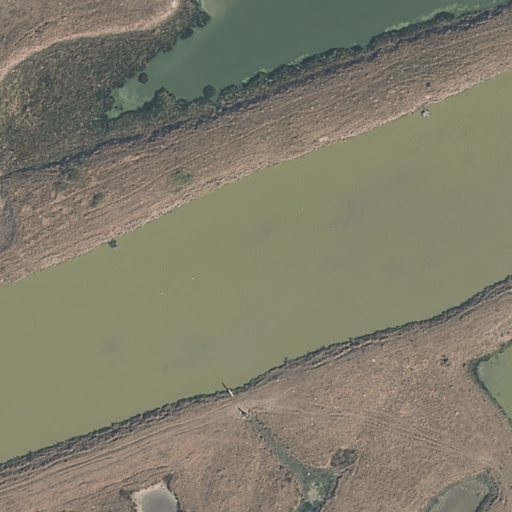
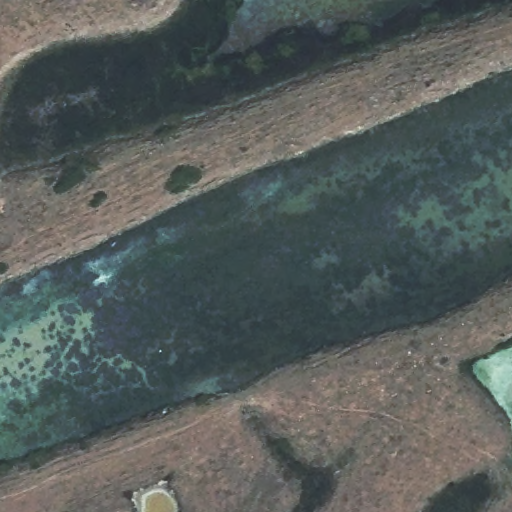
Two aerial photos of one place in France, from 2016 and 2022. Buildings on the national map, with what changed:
[]

